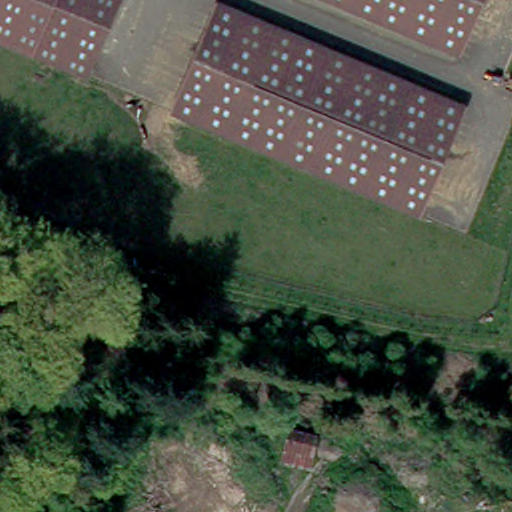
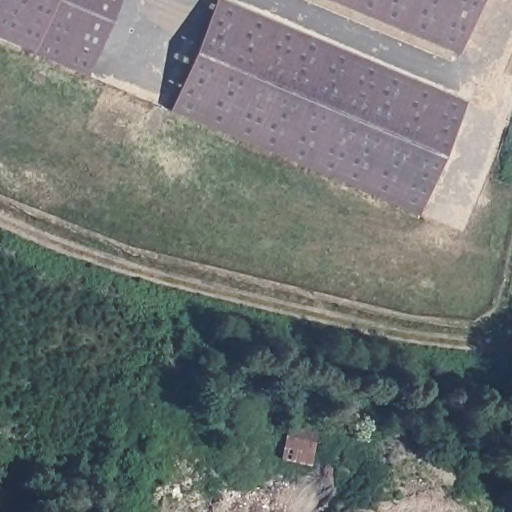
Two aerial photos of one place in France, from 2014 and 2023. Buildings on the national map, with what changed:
unchanged [(24,49),(0,39),(0,0),(44,0),(32,29),(24,49)]
unchanged [(32,29),(44,0),(110,0),(90,51),(32,29)]
unchanged [(381,70),(461,100),(417,209),(284,155),(166,109),(207,0),(381,70)]
unchanged [(335,0),(479,0),(458,50),(335,0)]
unchanged [(90,51),(81,72),(24,49),(32,29),(90,51)]

